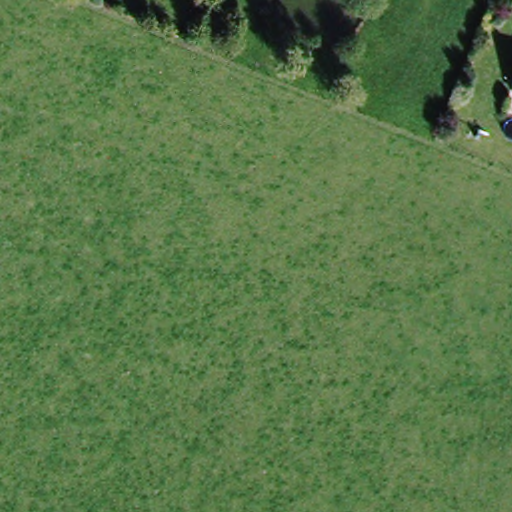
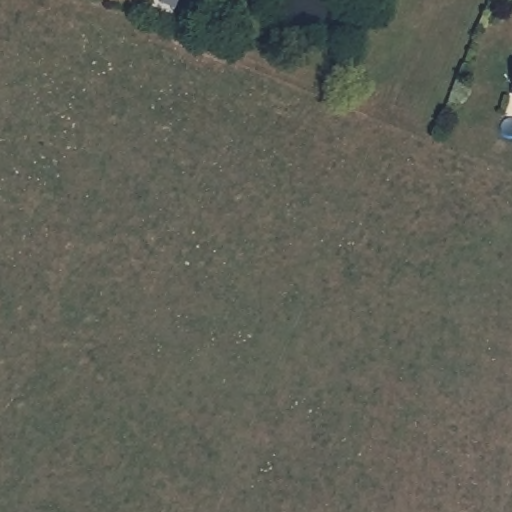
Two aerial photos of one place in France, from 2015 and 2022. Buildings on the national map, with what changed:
unchanged [(512,100),(508,99),(512,80),(512,100)]

